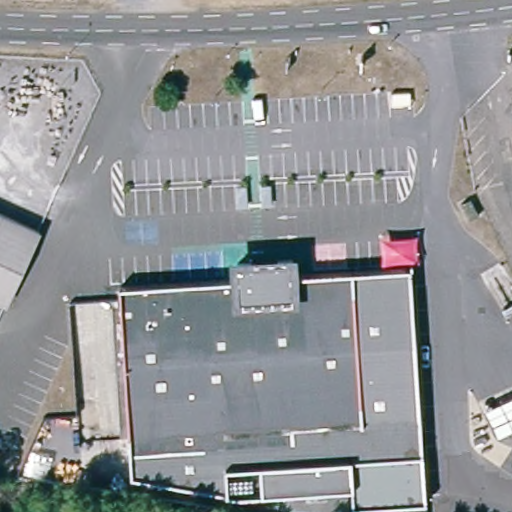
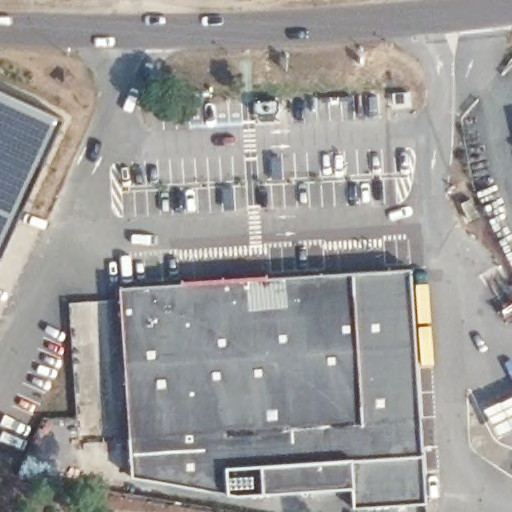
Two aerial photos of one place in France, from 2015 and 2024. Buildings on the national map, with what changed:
new [(57,116),(0,243),(0,90),(57,116)]
unchanged [(393,108),(393,95),(412,94),(412,107),(393,108)]
unchanged [(462,206),(472,201),(481,218),(471,223),(462,206)]
demolished [(39,228),(2,309),(0,308),(0,210),(39,228)]
unchanged [(426,499),(356,502),(352,486),(237,496),(175,485),(131,477),(121,287),(238,280),(237,265),(295,261),(296,277),(362,273),(413,270),(420,393),(426,499)]
unchanged [(486,412),(512,399),(512,433),(498,439),(486,412)]

